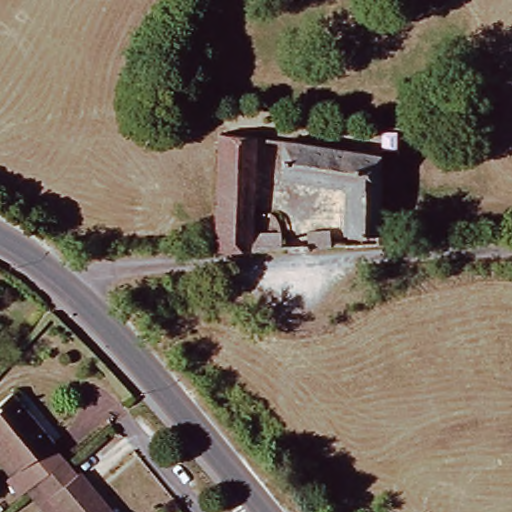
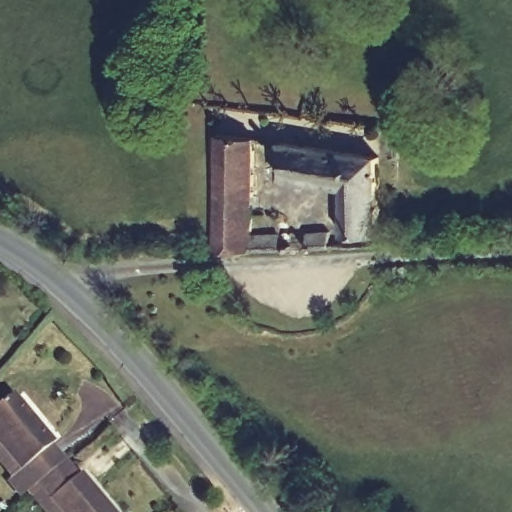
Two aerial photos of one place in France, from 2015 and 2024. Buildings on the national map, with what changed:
unchanged [(217,131),(255,135),(252,234),(282,234),(282,249),(217,251),(217,131)]
unchanged [(337,232),(340,191),(277,179),(279,139),(374,151),(374,234),(375,245),(354,246),(353,233),(337,232)]
unchanged [(309,248),(308,234),(329,233),(330,247),(309,248)]
unchanged [(0,465),(0,417),(19,403),(69,468),(39,494),(11,460),(2,467),(0,465)]
unchanged [(69,468),(103,512),(55,512),(39,494),(69,468)]

